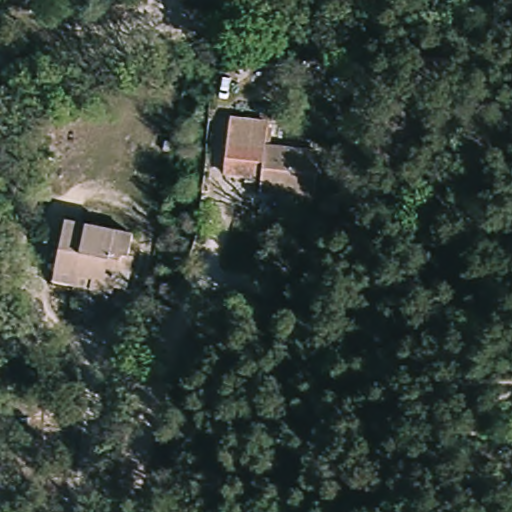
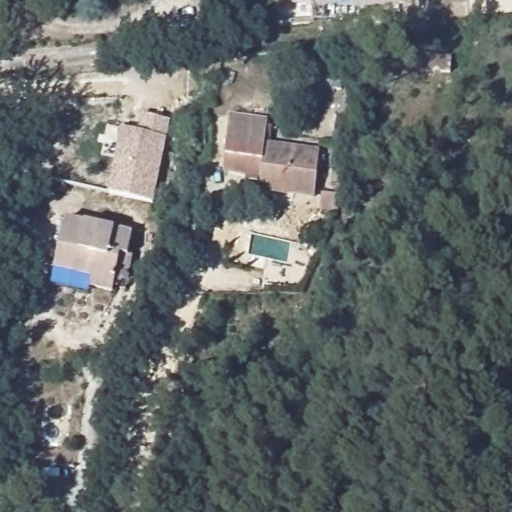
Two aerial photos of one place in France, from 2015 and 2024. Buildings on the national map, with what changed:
new [(355,0),(368,0),(355,2),(355,0)]
unchanged [(412,68),(442,72),(440,87),(410,83),(412,68)]
new [(137,132),(141,115),(170,122),(167,138),(152,202),(107,194),(120,129),(137,132)]
unchanged [(224,172),(229,132),(263,137),(262,147),(317,154),(312,202),(259,196),(260,184),(242,181),(242,175),(224,172)]
unchanged [(67,215),(131,226),(128,252),(118,250),(113,285),(93,281),(77,277),(75,287),(55,282),(57,265),(67,215)]

